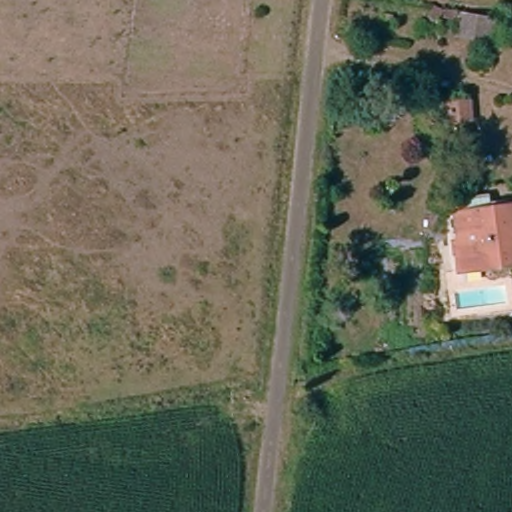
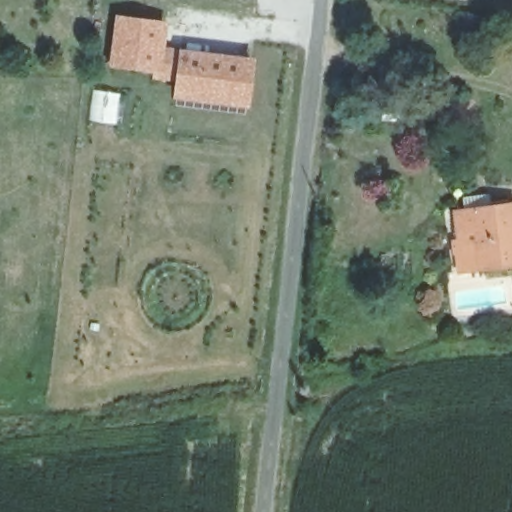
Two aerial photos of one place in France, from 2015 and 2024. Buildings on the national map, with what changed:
new [(114,13),(168,21),(165,46),(176,47),(172,83),(150,80),(151,74),(107,68),(114,13)]
new [(172,83),(176,47),(256,57),(249,109),(171,99),(172,83)]
new [(92,89),(121,93),(116,124),(88,121),(92,89)]
unchanged [(469,93),(471,115),(453,116),(452,94),(469,93)]
unchanged [(470,277),(470,276),(465,258),(463,259),(460,248),(476,244),(476,247),(482,246),(479,233),(479,234),(463,237),(458,218),(468,216),(465,203),(471,202),(490,197),(493,210),(512,205),(512,266),(470,277)]

